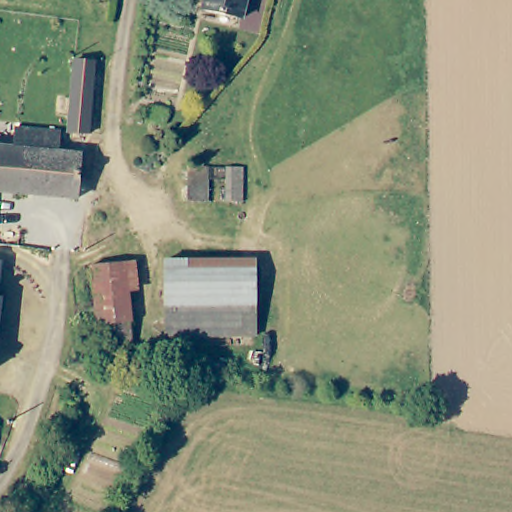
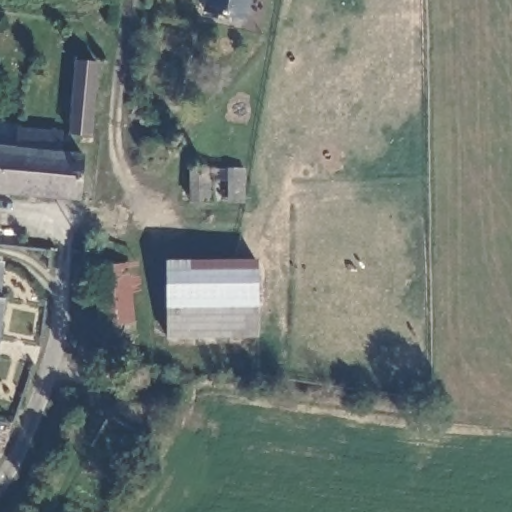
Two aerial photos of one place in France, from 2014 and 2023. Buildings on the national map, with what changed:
unchanged [(243,19),(204,10),(206,0),(247,0),(243,19)]
unchanged [(96,62),(90,135),(70,133),(76,61),(96,62)]
unchanged [(16,129),(61,132),(60,153),(83,155),(79,199),(0,193),(0,148),(15,149),(16,129)]
unchanged [(209,168),(208,202),(190,202),(190,168),(209,168)]
unchanged [(244,202),(229,202),(229,168),(244,169),(244,202)]
unchanged [(113,247),(124,246),(129,307),(126,307),(129,328),(99,330),(97,310),(93,310),(89,250),(113,247)]
unchanged [(257,304),(168,304),(166,261),(257,260),(257,304)]
unchanged [(0,262),(1,262),(0,277),(0,262)]
unchanged [(0,316),(0,298),(3,298),(0,316)]
unchanged [(258,336),(168,337),(168,304),(257,304),(258,336)]

